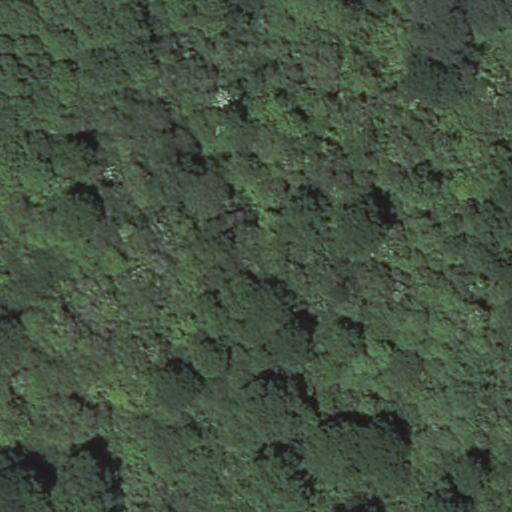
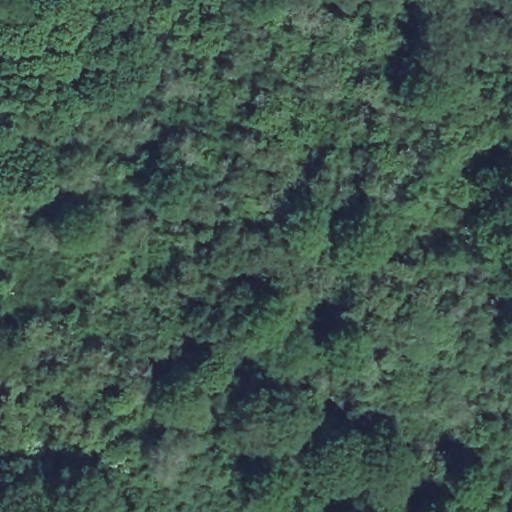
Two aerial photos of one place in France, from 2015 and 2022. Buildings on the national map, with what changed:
[]

